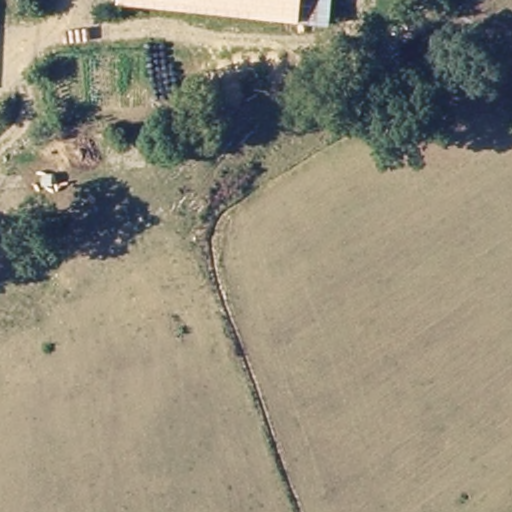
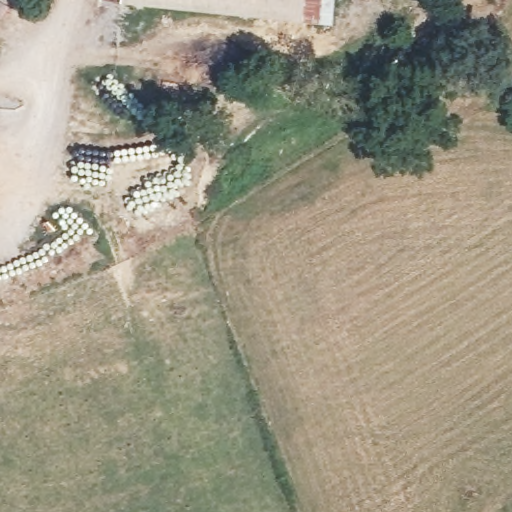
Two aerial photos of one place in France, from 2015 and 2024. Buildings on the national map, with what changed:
unchanged [(125,5),(125,0),(307,0),(305,23),(125,5)]

